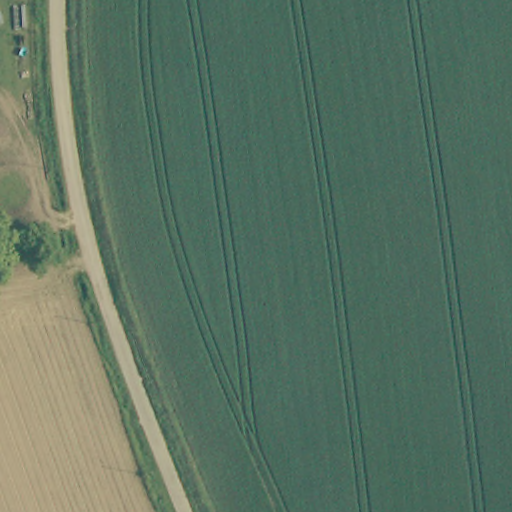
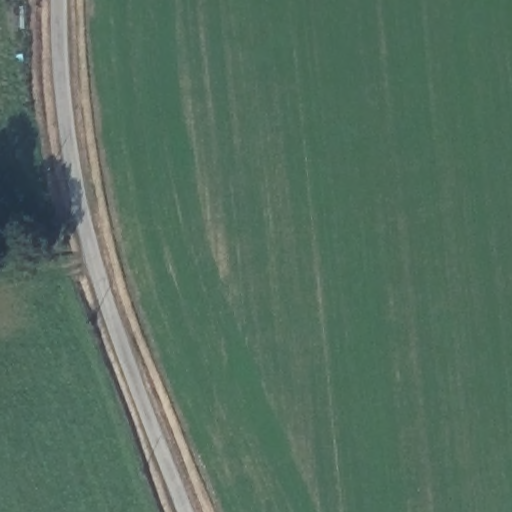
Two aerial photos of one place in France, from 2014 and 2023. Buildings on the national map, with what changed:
[]

